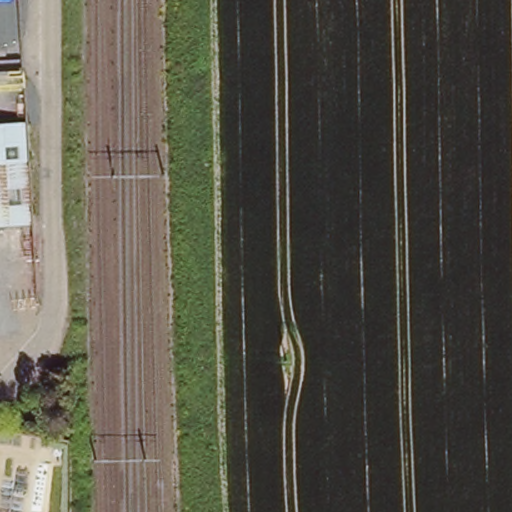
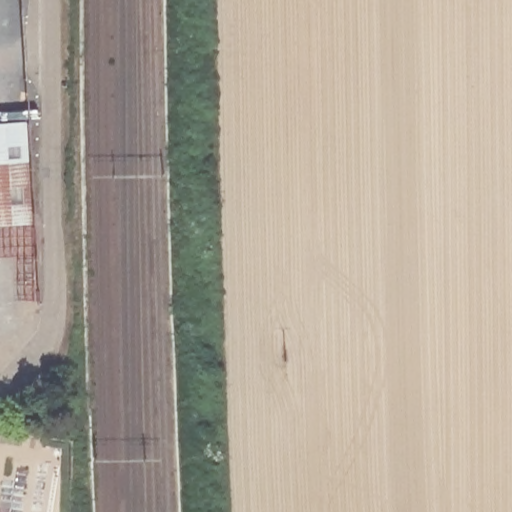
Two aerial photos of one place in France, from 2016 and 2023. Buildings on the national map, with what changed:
unchanged [(27,228),(0,230),(0,122),(27,122),(27,228)]

